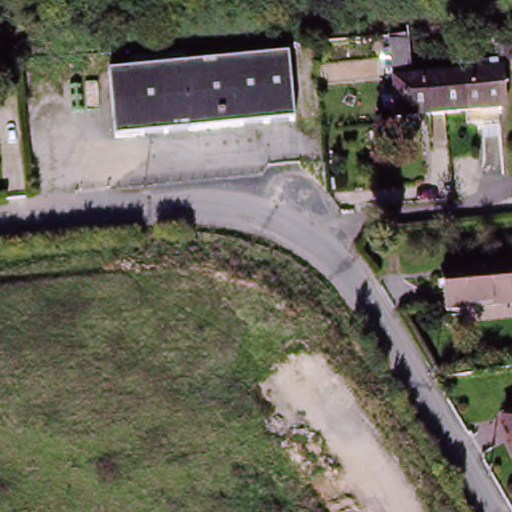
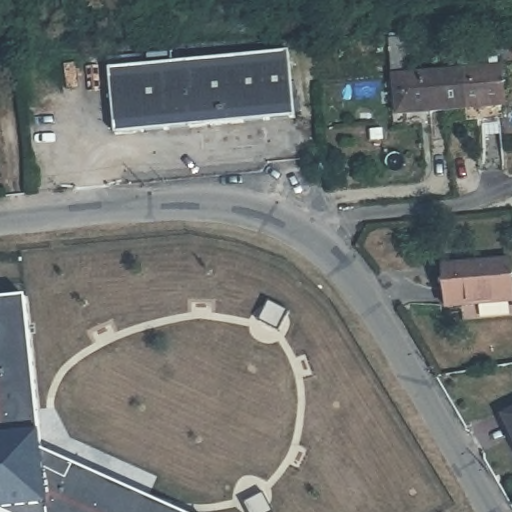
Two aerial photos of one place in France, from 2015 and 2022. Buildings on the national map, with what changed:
unchanged [(447,111),(402,114),(397,39),(412,38),(416,75),(445,73),(447,111)]
unchanged [(297,115),(114,134),(107,67),(290,48),(297,115)]
unchanged [(476,71),(476,62),(498,60),(502,106),(447,111),(445,73),(476,71)]
demolished [(0,108),(0,77),(11,76),(16,105),(0,108)]
unchanged [(450,305),(447,265),(512,263),(512,302),(450,305)]
new [(40,430),(46,430),(48,453),(176,512),(0,512),(0,303),(27,300),(40,430)]
unchanged [(509,414),(512,412),(512,421),(509,414)]

